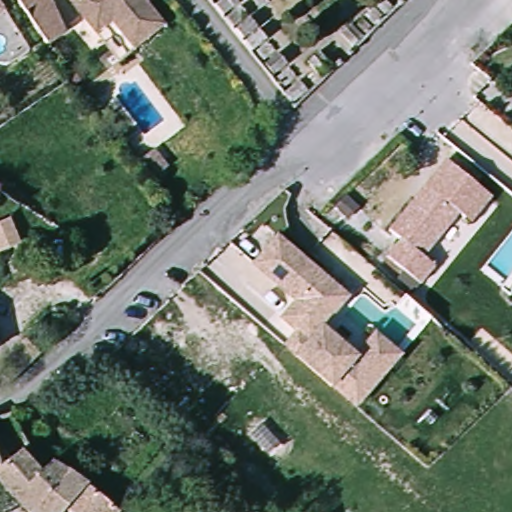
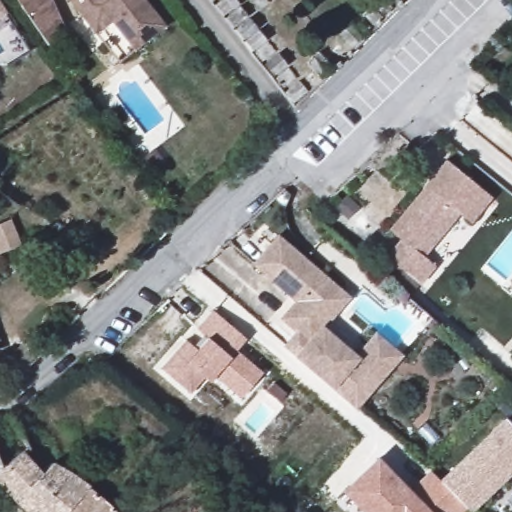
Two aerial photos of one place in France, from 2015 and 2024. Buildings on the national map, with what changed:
unchanged [(66,33),(47,47),(16,0),(53,0),(66,33)]
unchanged [(166,24),(136,48),(112,18),(96,30),(72,0),(147,0),(166,24)]
unchanged [(0,16),(0,6),(5,13),(0,16)]
unchanged [(465,207),(425,256),(436,265),(421,283),(389,256),(403,239),(390,229),(450,159),(495,198),(478,218),(465,207)]
unchanged [(16,244),(0,251),(0,223),(5,221),(16,244)]
unchanged [(351,296),(322,327),(354,355),(375,332),(403,356),(357,410),(327,388),(328,384),(278,346),(293,332),(278,317),(293,300),(251,264),(279,234),(351,296)]
new [(214,377),(209,383),(204,378),(190,395),(161,369),(185,340),(193,347),(202,336),(196,330),(213,311),(247,340),(236,351),(263,374),(240,399),(214,377)]
unchanged [(20,352),(0,372),(0,352),(11,342),(20,352)]
unchanged [(11,451),(0,460),(0,416),(15,446),(11,451)]
new [(377,458),(409,490),(430,471),(440,480),(504,418),(512,427),(512,473),(471,512),(470,512),(467,509),(463,512),(362,512),(342,491),(377,458)]
unchanged [(25,480),(40,493),(22,512),(14,512),(0,495),(0,460),(11,451),(31,473),(25,480)]
unchanged [(75,490),(56,511),(55,512),(22,512),(40,493),(25,480),(31,473),(42,462),(75,490)]
unchanged [(99,512),(57,512),(56,511),(75,490),(99,512)]

